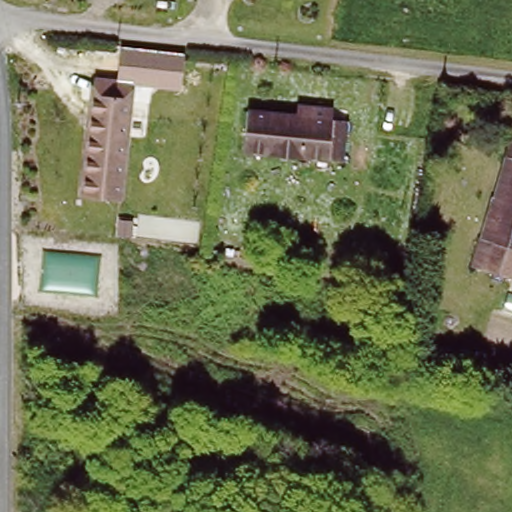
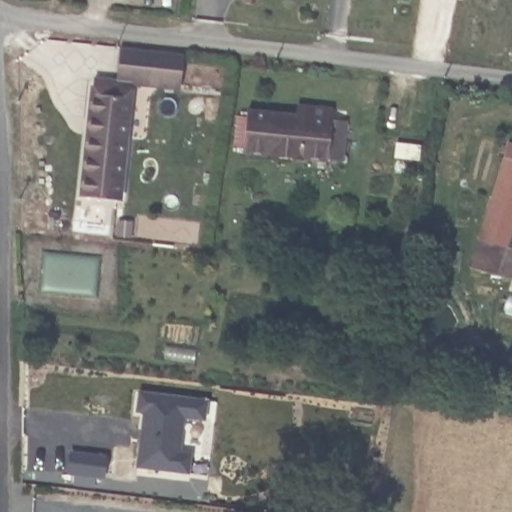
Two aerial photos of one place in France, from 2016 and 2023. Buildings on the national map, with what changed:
unchanged [(111,78),(132,81),(130,94),(116,196),(79,191),(95,76),(111,78)]
unchanged [(246,150),(251,110),(349,119),(347,139),(337,138),(335,158),(246,150)]
unchanged [(487,264),(494,241),(477,236),(490,196),(494,197),(506,157),(502,156),(507,140),(512,142),(512,271),(487,264)]
new [(139,391),(207,400),(205,420),(185,417),(180,452),(191,454),(189,473),(137,467),(144,412),(136,411),(139,391)]
new [(77,452),(112,457),(110,477),(75,472),(77,452)]

